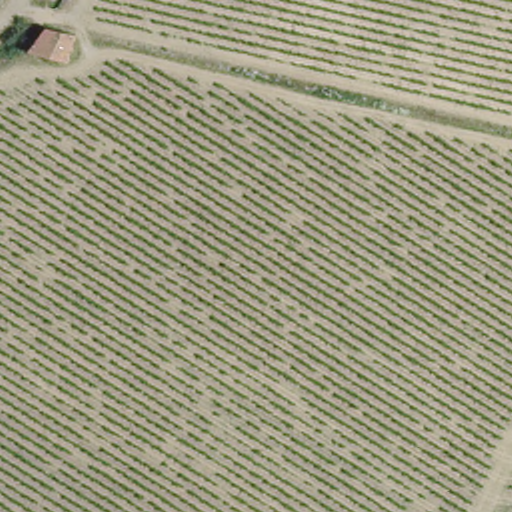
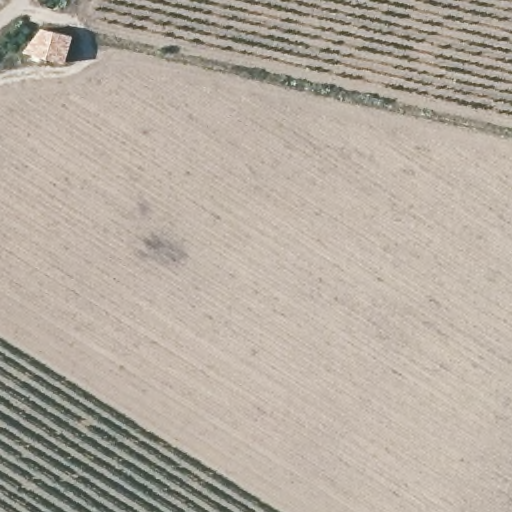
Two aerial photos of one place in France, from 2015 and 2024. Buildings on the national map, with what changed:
unchanged [(67,44),(60,70),(25,61),(40,36),(67,44)]

